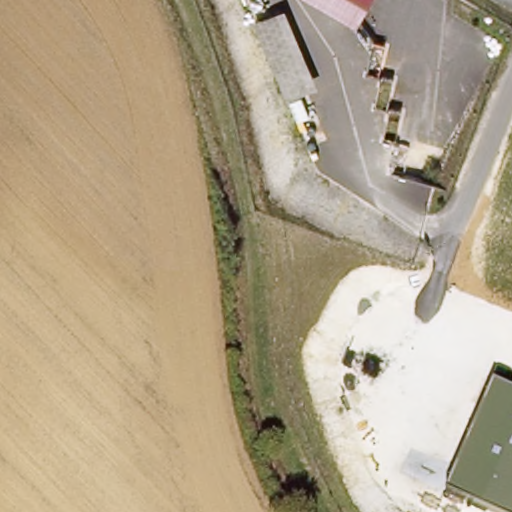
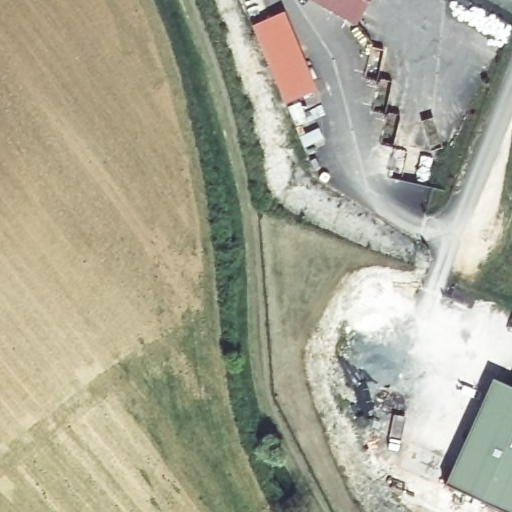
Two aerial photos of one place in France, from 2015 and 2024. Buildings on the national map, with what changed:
unchanged [(311,0),(373,0),(358,27),(311,0)]
unchanged [(302,93),(286,99),(256,25),(272,19),(281,14),(285,25),(307,79),(311,89),(302,93)]
unchanged [(493,381),(511,389),(512,387),(512,512),(502,512),(447,487),(493,381)]

